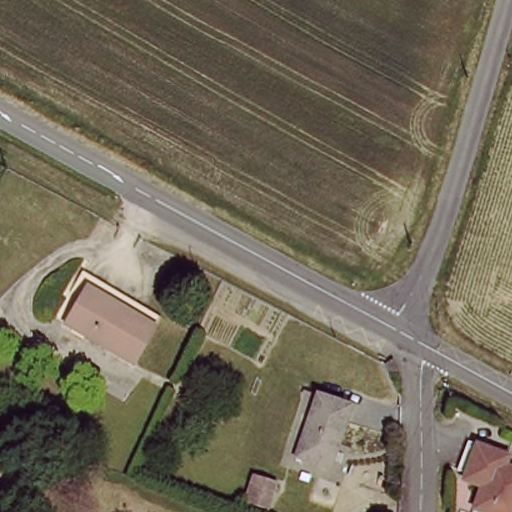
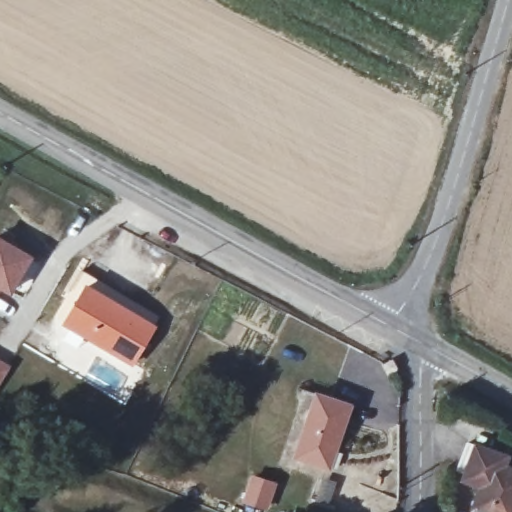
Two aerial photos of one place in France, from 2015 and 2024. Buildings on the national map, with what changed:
new [(10,296),(1,290),(0,292),(0,238),(33,256),(10,296)]
unchanged [(68,324),(92,287),(157,327),(135,364),(68,324)]
new [(0,383),(0,359),(10,365),(0,383)]
unchanged [(289,459),(322,399),(352,417),(321,476),(289,459)]
unchanged [(468,512),(474,492),(457,481),(470,442),(505,454),(502,466),(512,470),(512,512),(469,512),(468,512)]
unchanged [(279,478),(268,510),(244,505),(255,472),(279,478)]

